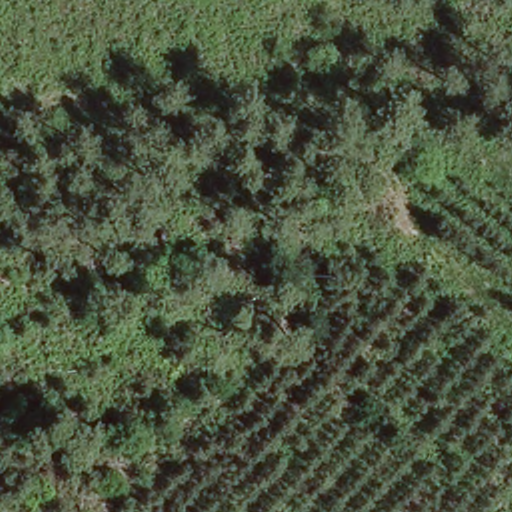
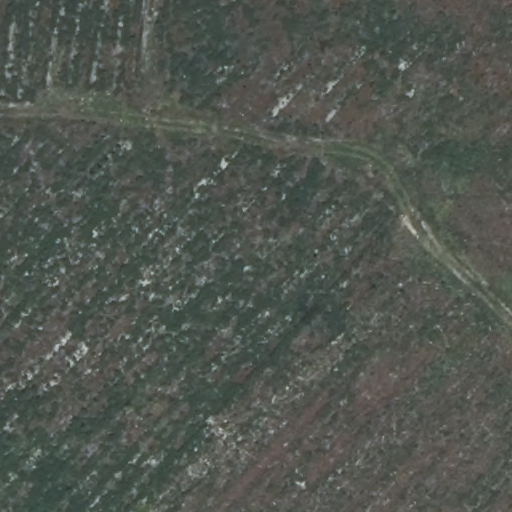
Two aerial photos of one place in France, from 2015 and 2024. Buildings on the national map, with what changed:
unchanged [(369,221),(342,206),(370,174),(394,191),(369,221)]

